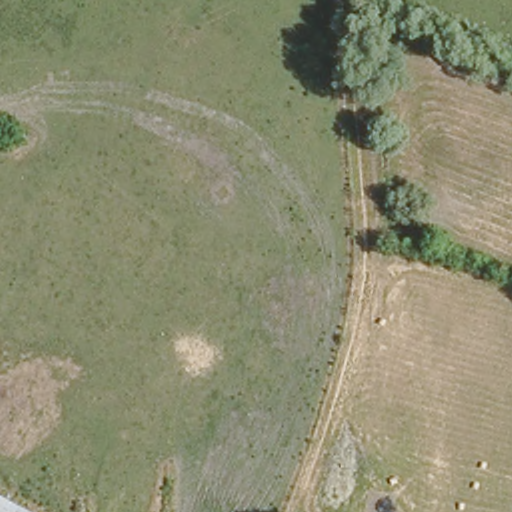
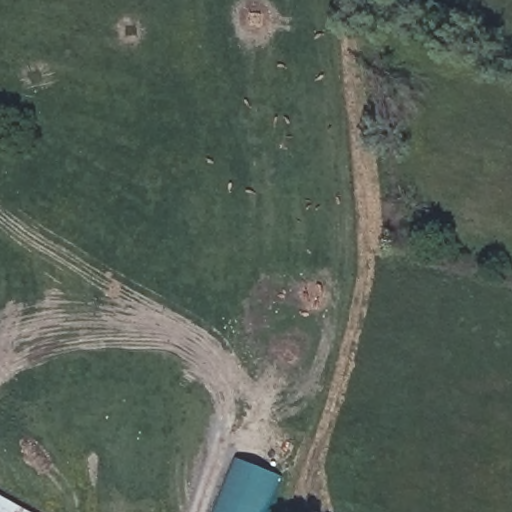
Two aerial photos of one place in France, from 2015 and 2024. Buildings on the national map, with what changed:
new [(236,459),(278,474),(263,512),(215,512),(236,459)]
unchanged [(16,500),(35,512),(10,512),(16,500)]

